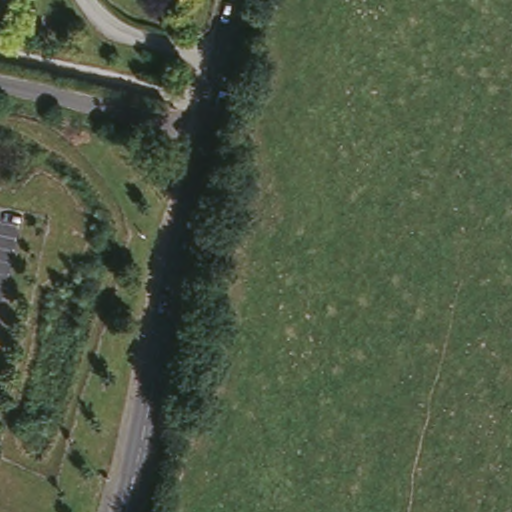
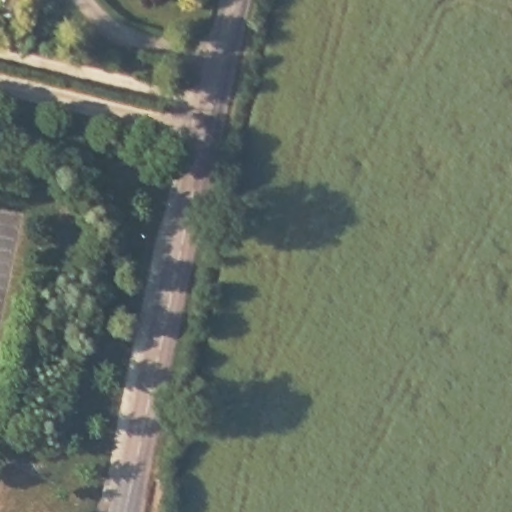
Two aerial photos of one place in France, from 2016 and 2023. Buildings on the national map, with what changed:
[]

